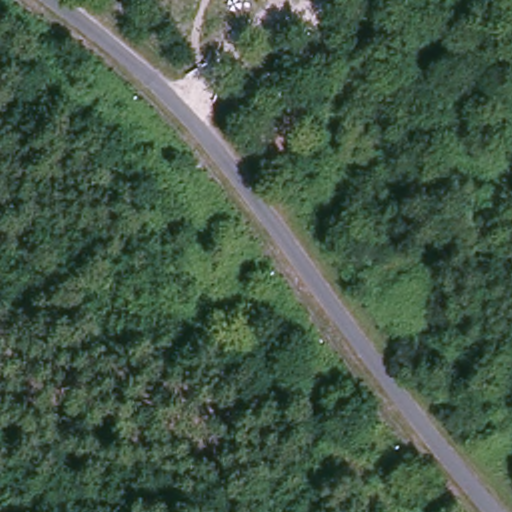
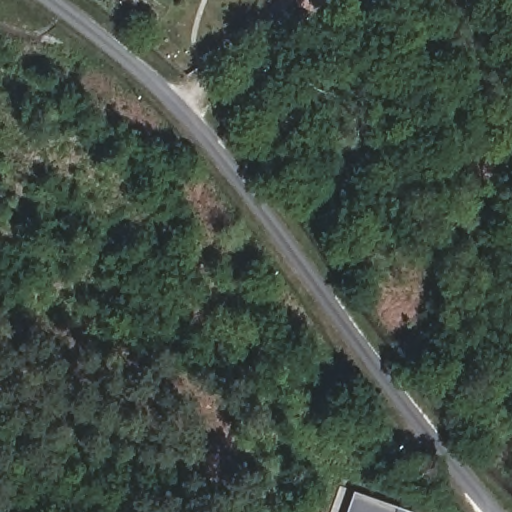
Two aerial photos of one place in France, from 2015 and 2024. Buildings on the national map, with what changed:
new [(355,492),(413,512),(349,512),(355,492)]

